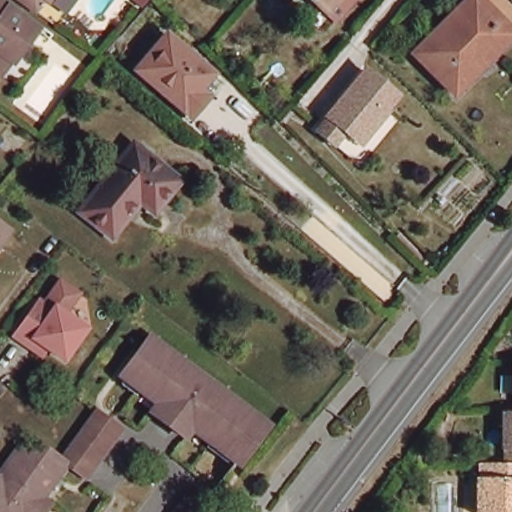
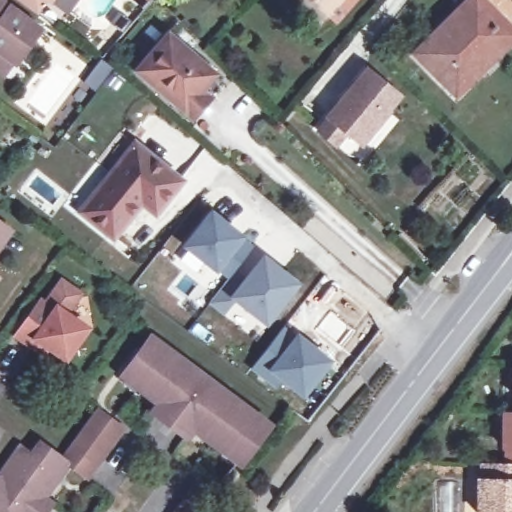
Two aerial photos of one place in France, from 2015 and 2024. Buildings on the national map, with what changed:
unchanged [(50,7),(45,2),(36,14),(15,0),(56,0),(50,7)]
unchanged [(329,12),(313,0),(345,0),(332,16),(329,12)]
unchanged [(487,11),(512,36),(512,41),(456,97),(415,57),(472,0),(479,0),(489,10),(487,11)]
unchanged [(0,1),(43,32),(16,68),(13,66),(4,79),(0,76),(0,1)]
unchanged [(183,106),(138,70),(166,35),(213,72),(183,106)]
unchanged [(384,112),(386,114),(361,145),(329,120),(366,74),(397,97),(384,112)]
unchanged [(139,199),(112,233),(80,209),(133,142),(179,179),(163,197),(154,210),(139,199)]
new [(211,207),(254,245),(228,278),(181,244),(211,207)]
unchanged [(0,258),(0,230),(13,240),(0,258)]
new [(228,278),(235,283),(262,251),(301,282),(266,325),(236,301),(224,315),(208,303),(228,278)]
new [(39,295),(46,298),(60,277),(82,292),(67,310),(90,326),(65,363),(46,350),(43,359),(11,336),(39,295)]
demolished [(23,350),(42,324),(54,333),(63,321),(94,345),(71,375),(54,362),(43,353),(37,360),(23,350)]
new [(286,322),(333,359),(301,398),(283,383),(277,390),(249,368),(286,322)]
unchanged [(239,465),(228,457),(231,453),(217,444),(215,447),(196,433),(189,441),(156,417),(162,409),(143,395),(146,391),(127,376),(153,341),(273,430),(263,445),(244,469),(239,465)]
unchanged [(29,459),(38,448),(60,463),(96,416),(109,426),(121,435),(86,481),(67,468),(42,502),(49,508),(47,512),(0,512),(0,480),(20,452),(29,459)]
unchanged [(493,484),(493,468),(512,468),(512,512),(486,512),(486,484),(493,484)]
unchanged [(207,512),(186,512),(193,502),(207,512)]

